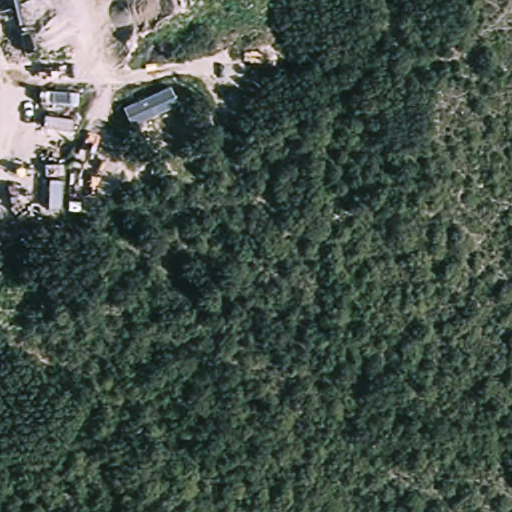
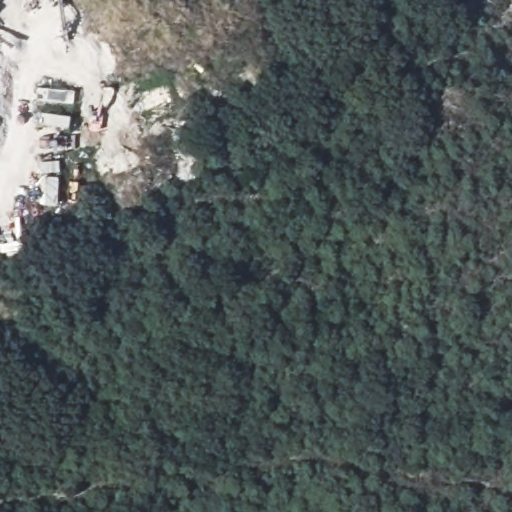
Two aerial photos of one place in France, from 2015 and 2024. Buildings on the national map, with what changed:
unchanged [(176,103),(129,123),(119,102),(169,81),(176,103)]

